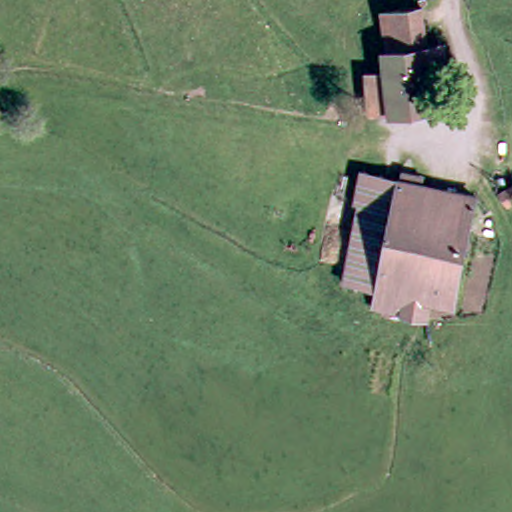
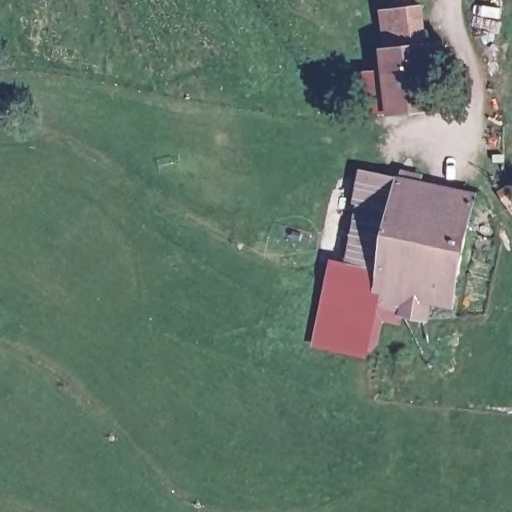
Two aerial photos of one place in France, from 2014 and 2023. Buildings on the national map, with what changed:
unchanged [(429,42),(430,100),(380,108),(379,69),(378,53),(377,4),(401,3),(401,13),(402,24),(402,39),(429,42)]
unchanged [(406,175),(380,291),(336,281),(361,167),(406,175)]
unchanged [(380,291),(406,175),(431,179),(430,184),(473,192),(451,295),(425,290),(420,312),(377,303),(380,291)]
new [(370,358),(314,346),(332,259),(340,261),(336,281),(380,291),(377,303),(380,303),(370,358)]

